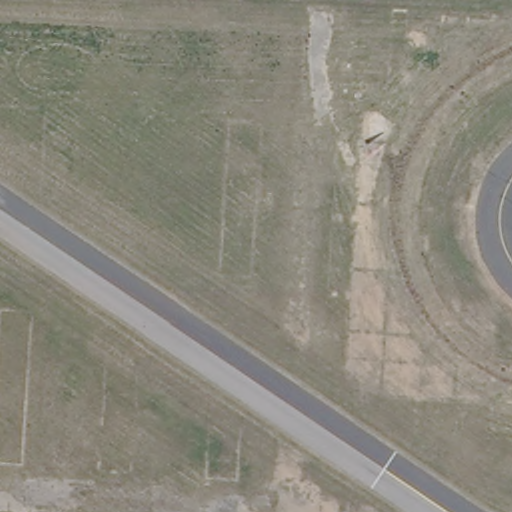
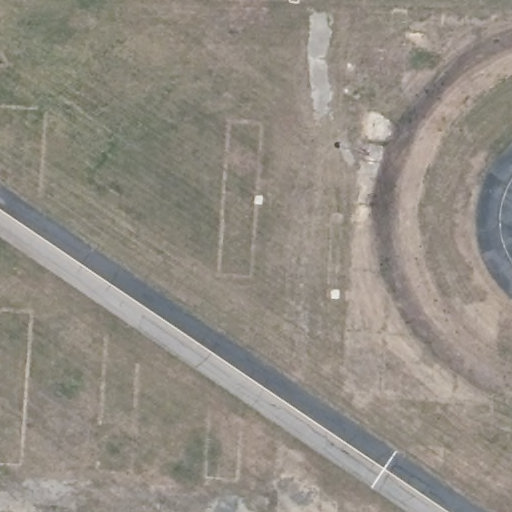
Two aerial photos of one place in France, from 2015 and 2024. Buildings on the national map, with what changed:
[]

